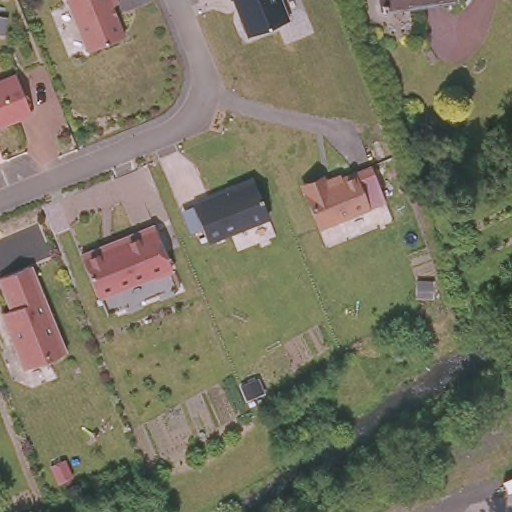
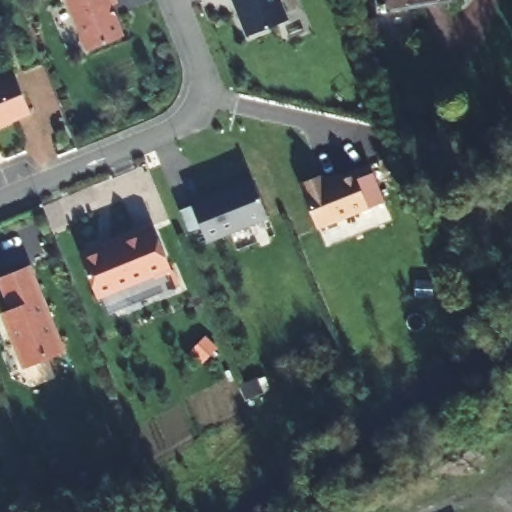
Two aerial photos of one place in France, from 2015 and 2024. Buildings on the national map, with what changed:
unchanged [(106,8),(118,36),(82,51),(61,0),(110,0),(112,5),(106,8)]
unchanged [(242,39),(233,16),(235,15),(230,0),(225,2),(224,0),(273,0),(282,23),(242,39)]
unchanged [(375,0),(451,0),(375,10),(375,0)]
unchanged [(25,114),(0,124),(0,80),(10,76),(25,114)]
unchanged [(318,182),(320,186),(365,168),(379,204),(312,231),(296,190),(318,182)]
unchanged [(228,191),(227,189),(246,181),(261,219),(200,243),(186,208),(228,191)]
unchanged [(97,250),(98,252),(133,238),(132,236),(150,229),(167,273),(150,280),(149,278),(92,300),(75,258),(97,250)]
unchanged [(60,357),(28,370),(20,373),(0,326),(0,317),(6,314),(0,300),(0,280),(24,270),(60,357)]

